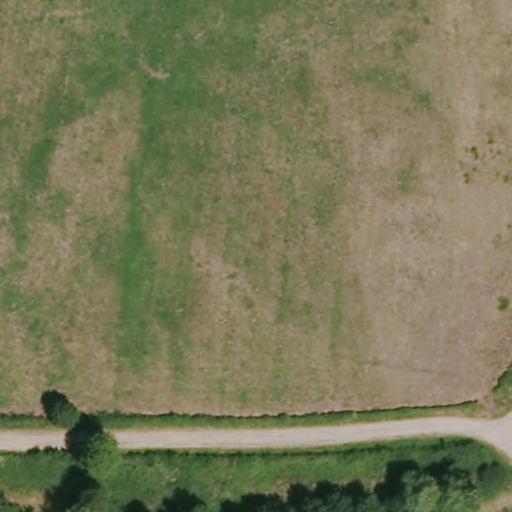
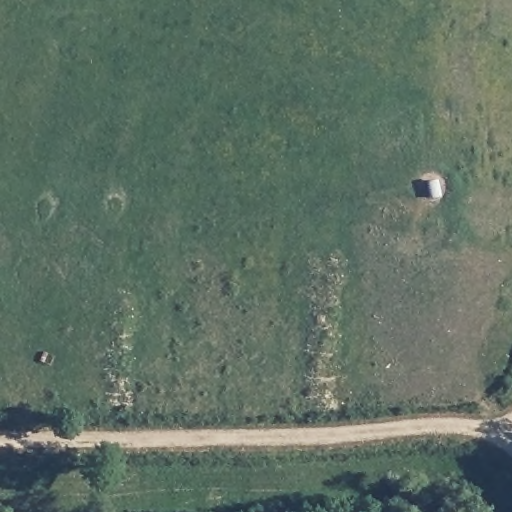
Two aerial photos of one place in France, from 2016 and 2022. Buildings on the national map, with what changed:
[]

